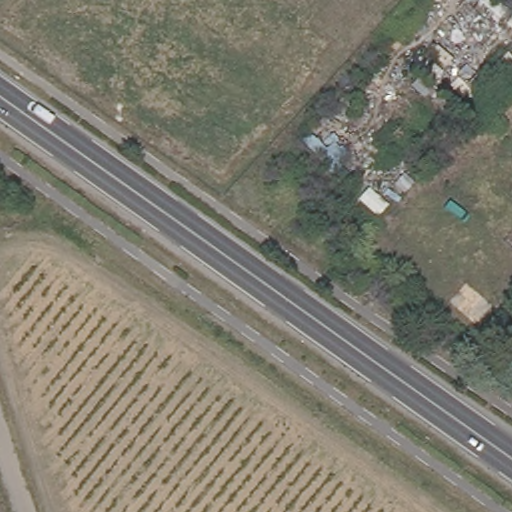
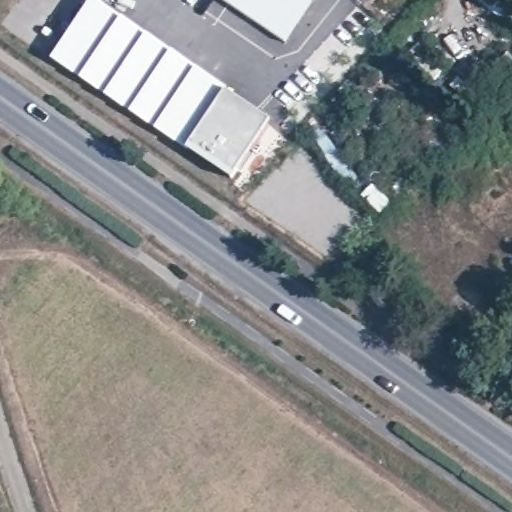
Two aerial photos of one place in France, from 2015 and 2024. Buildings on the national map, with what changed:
new [(89,0),(96,0),(270,118),(233,173),(189,143),(187,147),(52,56),(89,0)]
new [(283,42),(221,0),(311,0),(283,42)]

